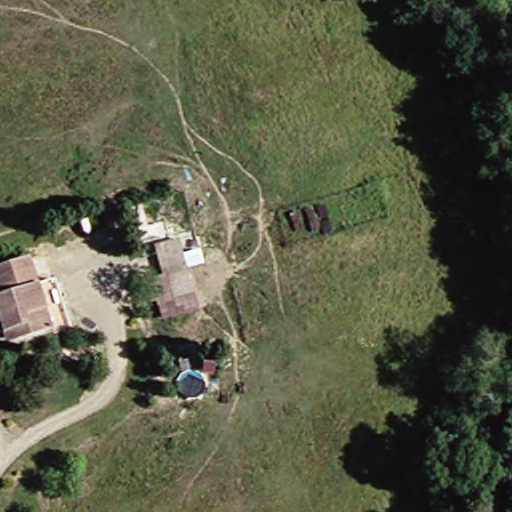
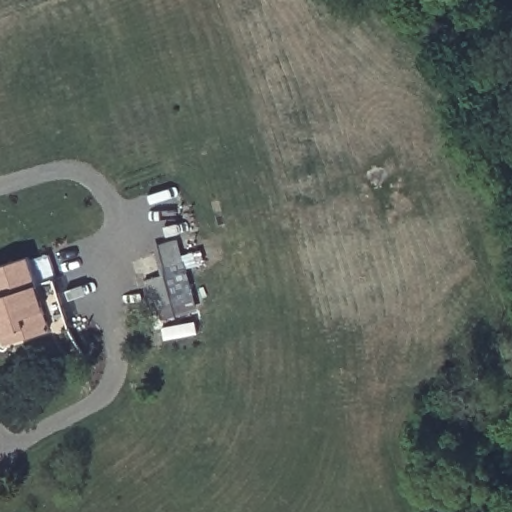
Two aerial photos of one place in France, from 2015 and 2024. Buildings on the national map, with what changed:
unchanged [(185,236),(200,292),(180,296),(176,283),(161,287),(159,275),(173,270),(165,242),(185,236)]
unchanged [(0,319),(0,292),(3,291),(0,281),(0,264),(35,251),(44,279),(60,273),(75,321),(20,338),(7,342),(3,328),(0,319)]

